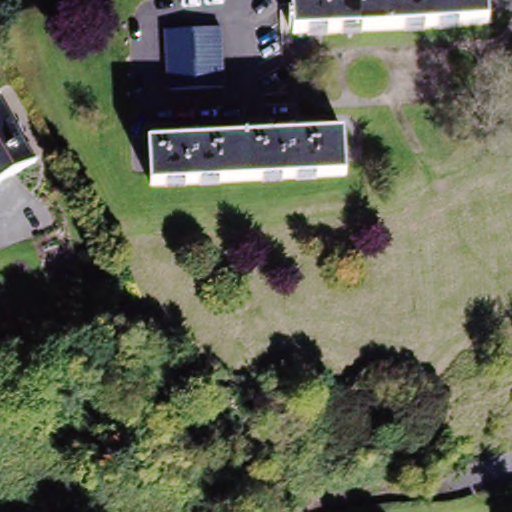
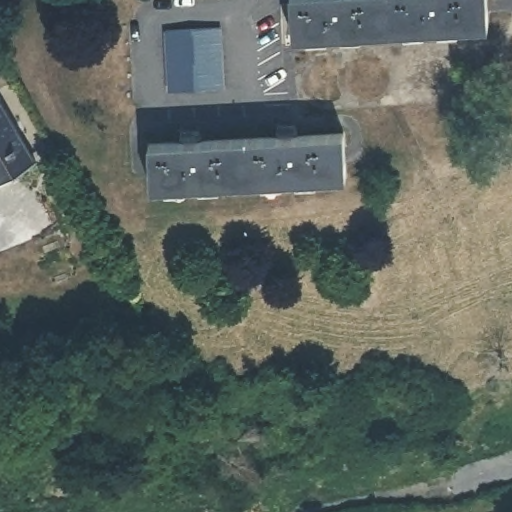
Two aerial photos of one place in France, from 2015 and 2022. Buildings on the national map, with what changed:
unchanged [(297,40),(295,0),(491,0),(492,29),(297,40)]
unchanged [(220,34),(222,91),(169,94),(166,36),(220,34)]
unchanged [(1,187),(0,187),(0,99),(39,165),(1,187)]
unchanged [(344,182),(151,193),(148,150),(185,147),(185,145),(180,145),(181,136),(199,135),(200,142),(196,144),(196,147),(284,142),(284,139),(277,139),(278,131),(298,130),(299,137),(293,139),(293,142),(341,139),(344,182)]

